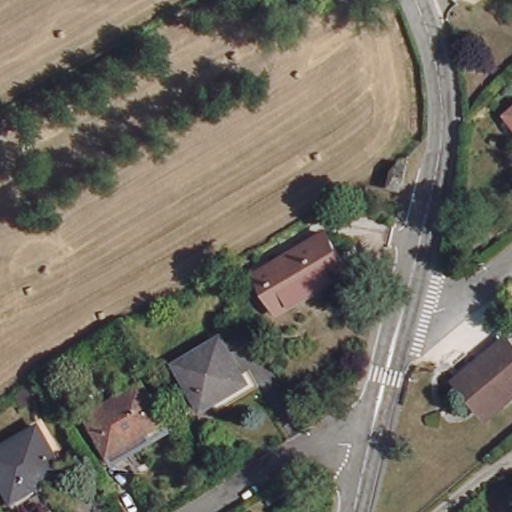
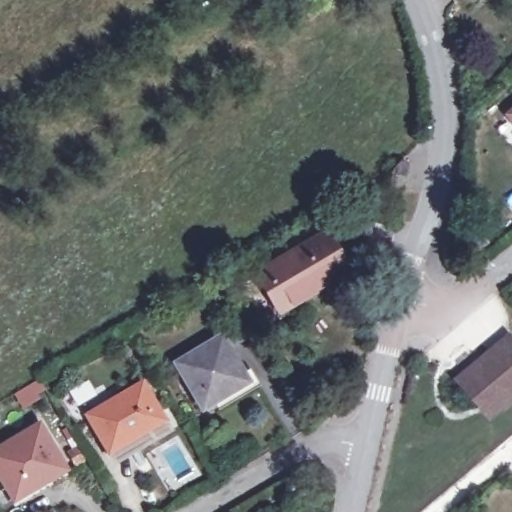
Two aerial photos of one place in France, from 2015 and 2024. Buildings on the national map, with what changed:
unchanged [(508,114),(512,111),(512,118),(508,114)]
unchanged [(402,163),(407,164),(402,188),(391,186),(395,167),(402,163)]
unchanged [(327,229),(350,270),(280,313),(255,272),(327,229)]
unchanged [(512,341),(512,394),(490,413),(462,378),(510,338),(512,341)]
unchanged [(218,342),(243,387),(205,410),(192,388),(185,392),(172,370),(218,342)]
unchanged [(127,449),(112,458),(83,411),(137,380),(159,416),(142,425),(148,437),(127,449)]
unchanged [(65,470),(15,500),(0,474),(0,449),(39,426),(65,470)]

